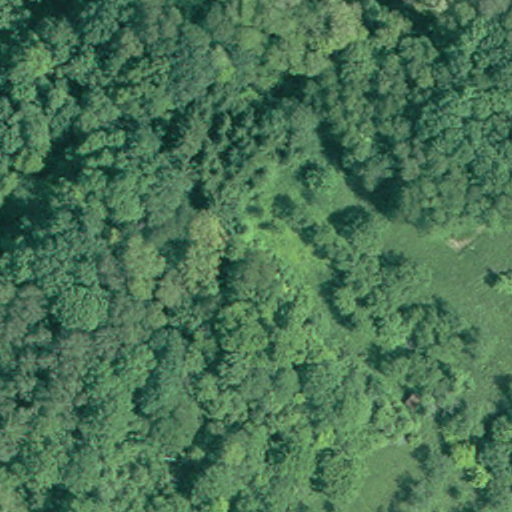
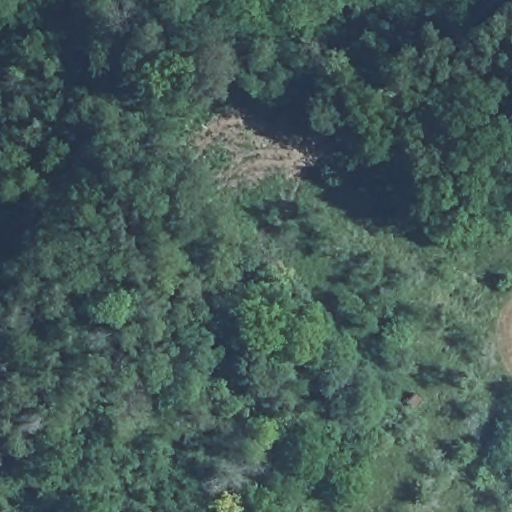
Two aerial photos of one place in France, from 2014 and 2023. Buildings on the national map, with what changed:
unchanged [(415,389),(423,396),(415,407),(407,401),(415,389)]

